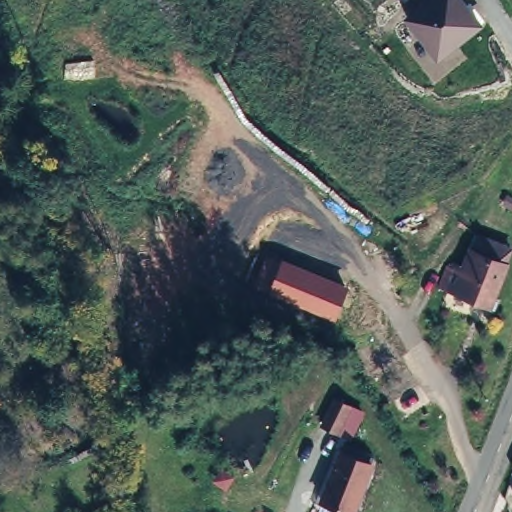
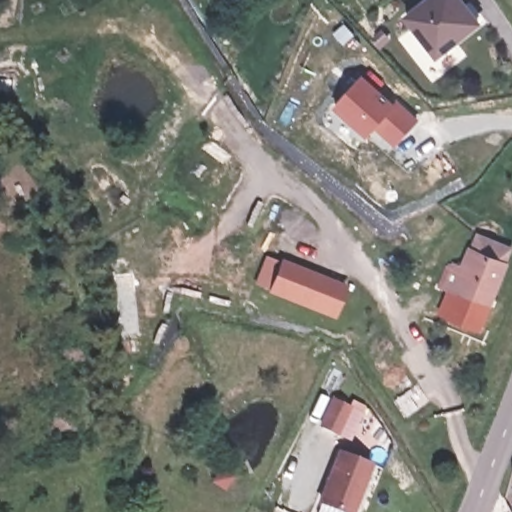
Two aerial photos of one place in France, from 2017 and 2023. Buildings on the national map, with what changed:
unchanged [(436,61),(401,16),(423,0),(465,0),(484,25),(436,61)]
new [(361,76),(393,104),(396,100),(416,120),(396,144),(375,126),(367,135),(334,108),(361,76)]
unchanged [(489,294),(491,295),(488,305),(467,298),(468,295),(438,285),(447,265),(454,267),(463,247),(469,233),(484,237),(504,245),(489,294)]
unchanged [(349,285),(336,320),(268,291),(281,258),(349,285)]
unchanged [(366,467),(349,512),(337,512),(317,505),(335,456),(366,467)]

